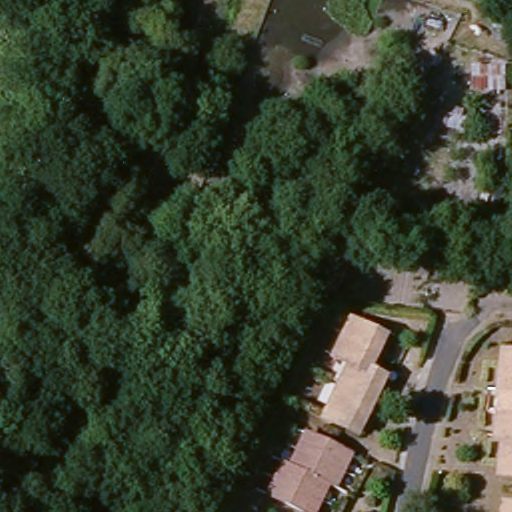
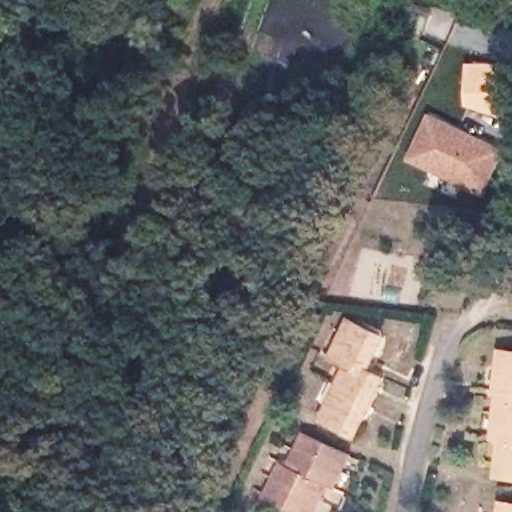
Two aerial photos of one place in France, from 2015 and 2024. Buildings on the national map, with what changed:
unchanged [(504,93),(473,91),(474,66),(505,68),(504,93)]
demolished [(426,126),(416,121),(426,101),(436,106),(426,126)]
new [(507,151),(485,198),(409,160),(432,113),(507,151)]
unchanged [(351,428),(329,418),(356,363),(340,355),(357,320),(379,331),(392,337),(385,350),(375,372),(391,380),(370,422),(364,435),(351,428)]
unchanged [(503,437),(496,436),(501,390),(498,390),(502,353),(512,354),(512,476),(499,475),(503,437)]
unchanged [(316,512),(304,512),(270,496),(286,463),(292,467),(307,434),(351,455),(336,487),(329,484),(316,512)]
unchanged [(504,504),(512,505),(512,512),(502,512),(504,504)]

